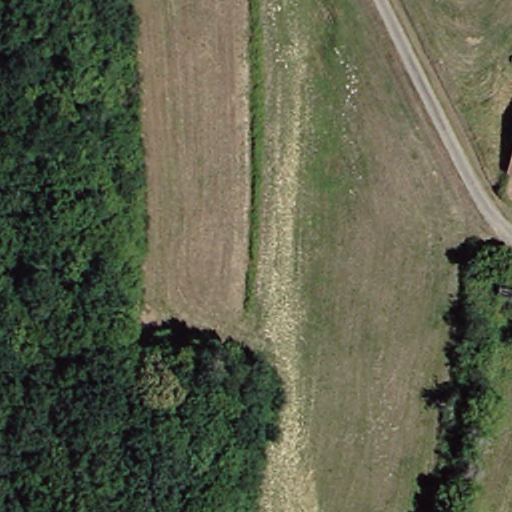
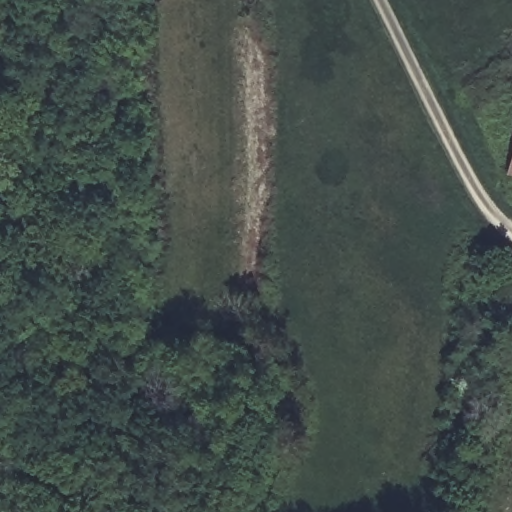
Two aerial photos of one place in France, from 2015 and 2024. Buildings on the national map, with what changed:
unchanged [(496,315),(502,285),(512,287),(512,317),(496,315)]

